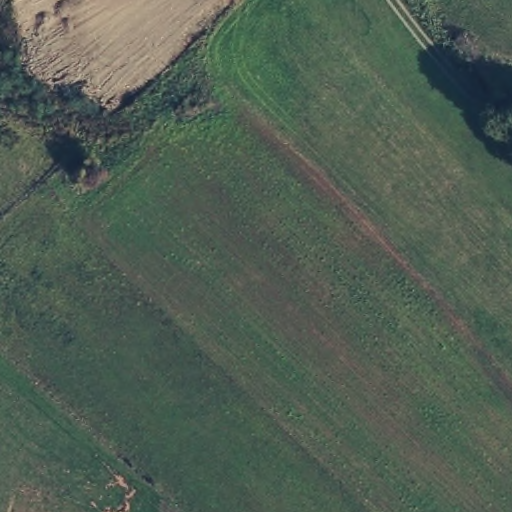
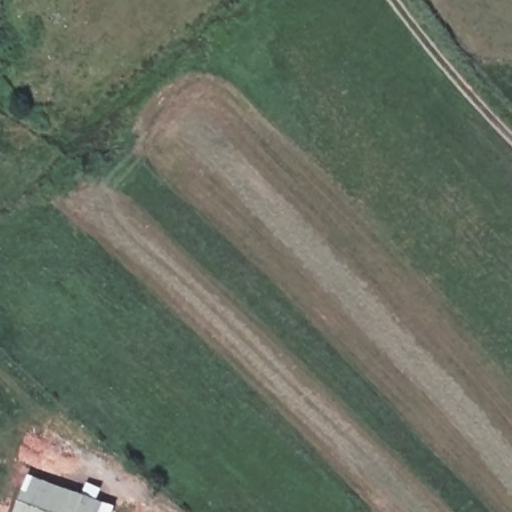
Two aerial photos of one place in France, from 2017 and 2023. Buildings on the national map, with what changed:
new [(113,507),(112,512),(14,512),(27,472),(113,507)]

